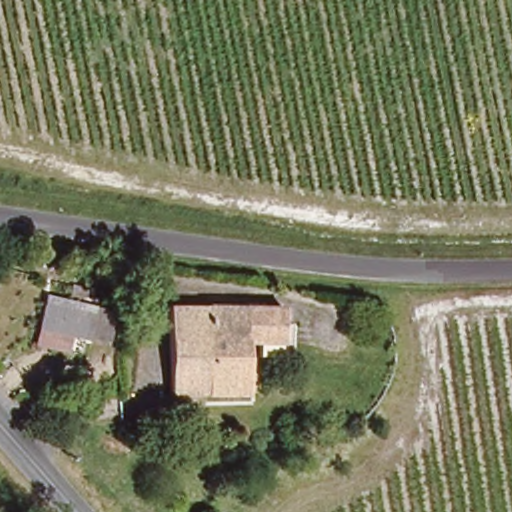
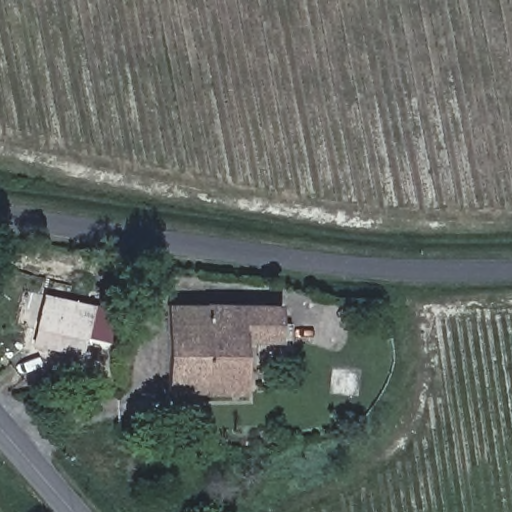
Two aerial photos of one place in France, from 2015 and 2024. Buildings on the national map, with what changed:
unchanged [(32,315),(37,294),(50,298),(80,305),(73,334),(55,329),(30,323),(32,315)]
unchanged [(238,386),(161,387),(159,301),(274,299),(274,319),(285,319),(285,354),(251,354),(251,337),(238,338),(238,386)]

